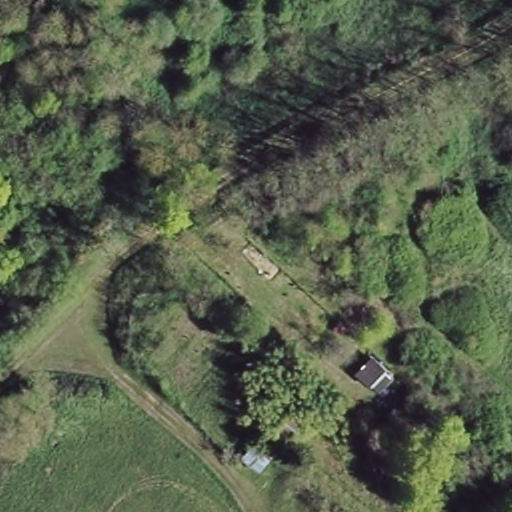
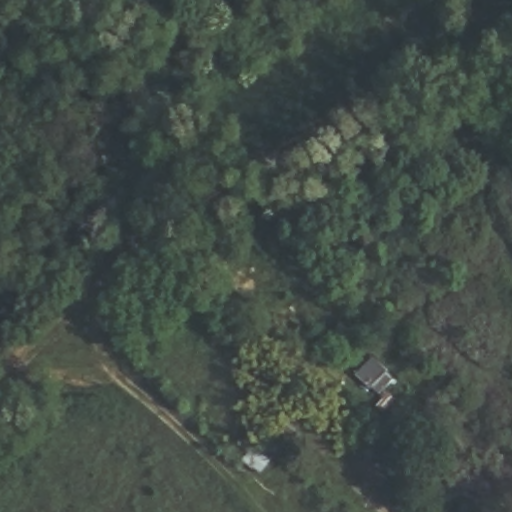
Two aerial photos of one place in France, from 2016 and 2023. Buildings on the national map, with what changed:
unchanged [(239,462),(254,439),(272,453),(256,470),(239,462)]

